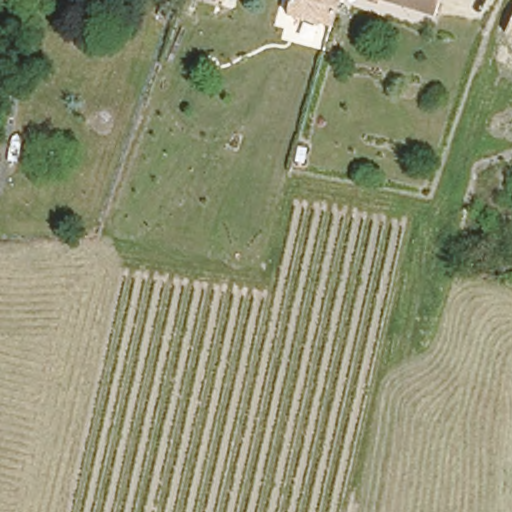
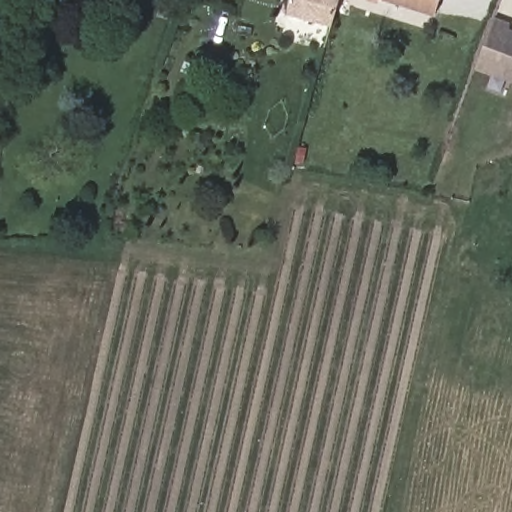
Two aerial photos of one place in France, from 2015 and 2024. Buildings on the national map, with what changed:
unchanged [(289,0),(334,0),(326,27),(284,15),(289,0)]
unchanged [(434,0),(430,17),(398,7),(374,0),(434,0)]
new [(512,83),(476,70),(495,19),(510,24),(509,30),(512,31),(512,83)]

